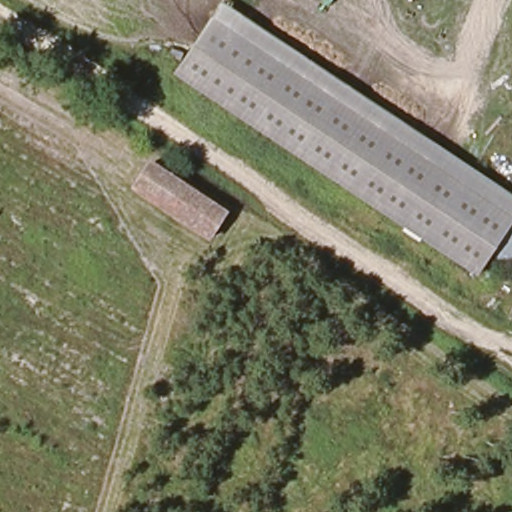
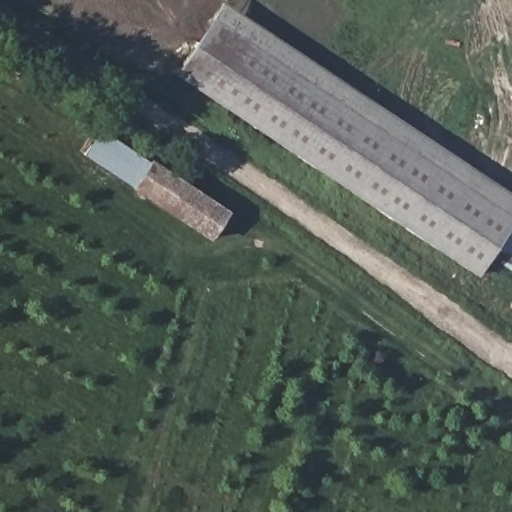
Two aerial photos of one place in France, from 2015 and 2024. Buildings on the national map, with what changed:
unchanged [(179,58),(216,5),(512,196),(512,215),(485,254),(179,58)]
new [(101,130),(155,166),(137,194),(85,156),(101,130)]
unchanged [(137,194),(155,166),(230,212),(214,240),(137,194)]

